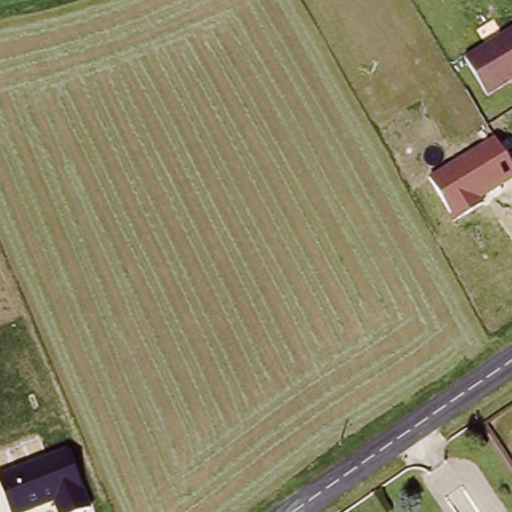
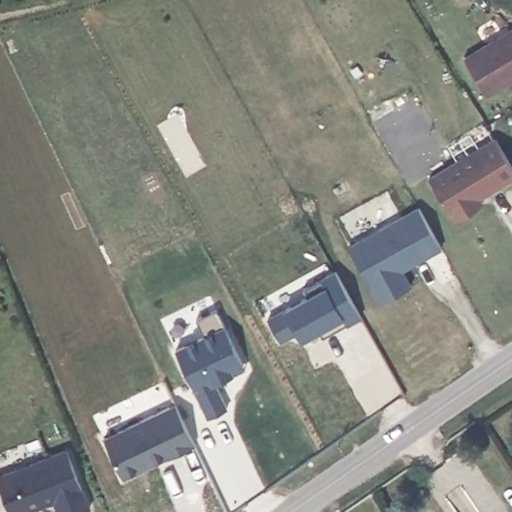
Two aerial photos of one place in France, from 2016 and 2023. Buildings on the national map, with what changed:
unchanged [(466,58),(512,31),(512,82),(489,96),(466,58)]
unchanged [(494,137),(512,166),(512,180),(479,200),(483,206),(455,222),(429,180),(494,137)]
new [(419,206),(441,246),(402,269),(411,285),(381,302),(349,245),(419,206)]
new [(346,325),(344,323),(323,337),(321,329),(301,340),(298,331),(279,342),(267,317),(283,307),(307,294),(303,287),(334,269),(361,317),(346,325)]
new [(238,375),(219,384),(232,409),(213,418),(180,350),(208,336),(201,319),(221,309),(248,366),(250,369),(238,375)]
new [(123,477),(104,436),(175,402),(194,443),(123,477)]
unchanged [(0,484),(0,476),(71,449),(92,509),(84,512),(57,512),(53,503),(29,512),(10,512),(0,484)]

